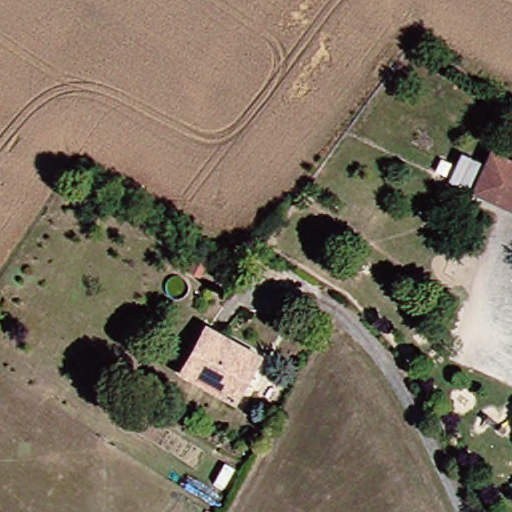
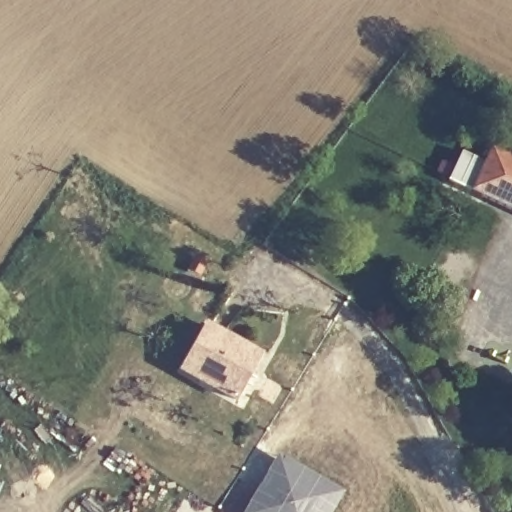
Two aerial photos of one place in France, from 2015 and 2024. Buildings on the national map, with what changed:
unchanged [(512,211),(470,191),(447,181),(461,150),(484,160),(490,146),(512,157),(512,211)]
unchanged [(235,405),(187,373),(210,330),(262,365),(235,405)]
new [(278,454),(345,494),(333,512),(243,512),(278,454)]

